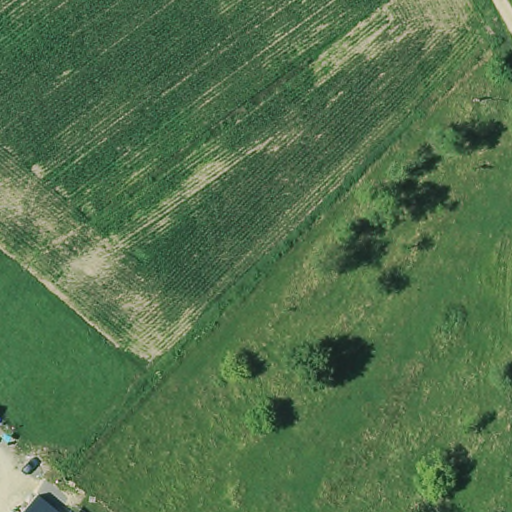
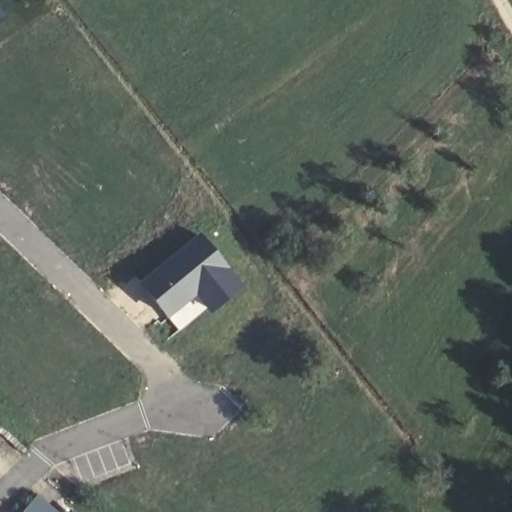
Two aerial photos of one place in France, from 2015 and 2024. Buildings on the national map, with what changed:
new [(0,20),(0,6),(7,14),(0,20)]
new [(200,230),(245,286),(210,314),(205,310),(178,332),(136,282),(200,230)]
unchanged [(70,509),(75,512),(68,512),(70,509)]

